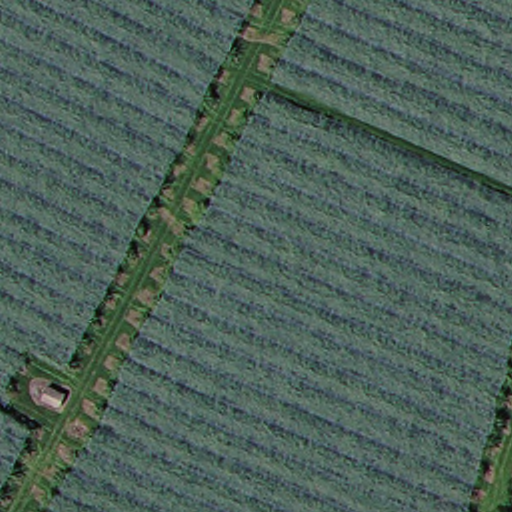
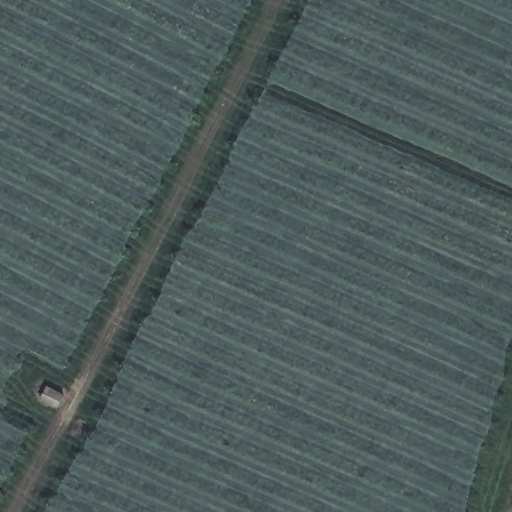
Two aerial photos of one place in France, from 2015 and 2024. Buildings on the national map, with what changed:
unchanged [(49,395),(43,407),(19,395),(25,382),(49,395)]

